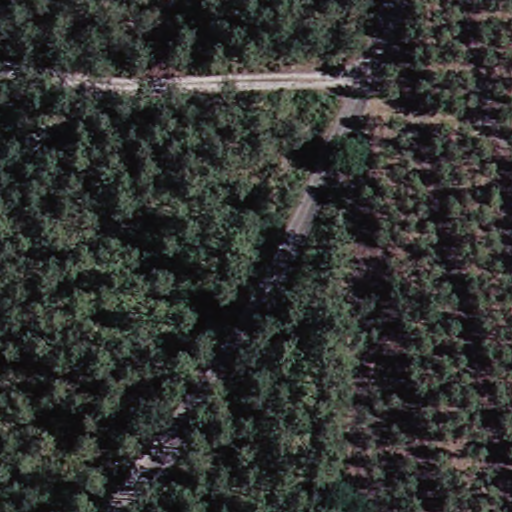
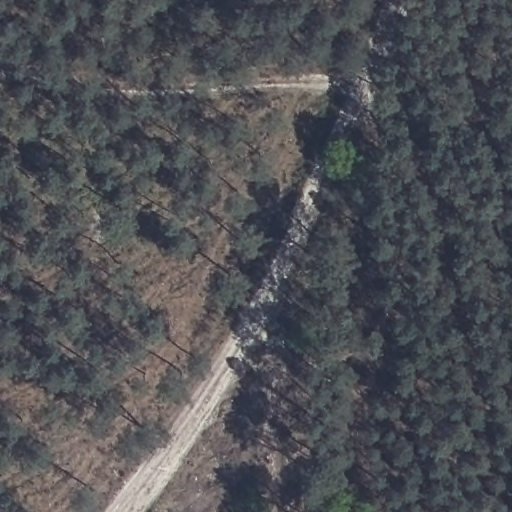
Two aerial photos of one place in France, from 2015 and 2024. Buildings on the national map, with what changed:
[]

